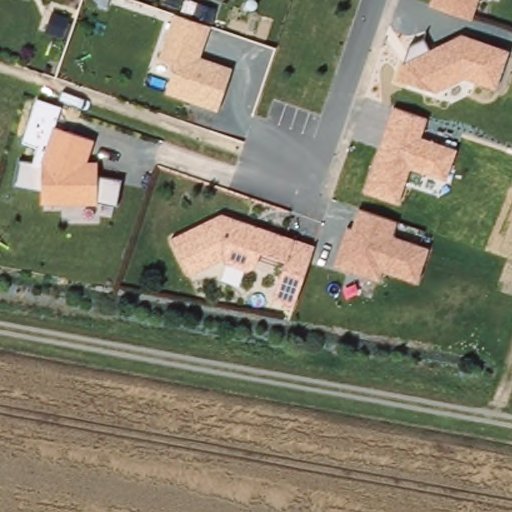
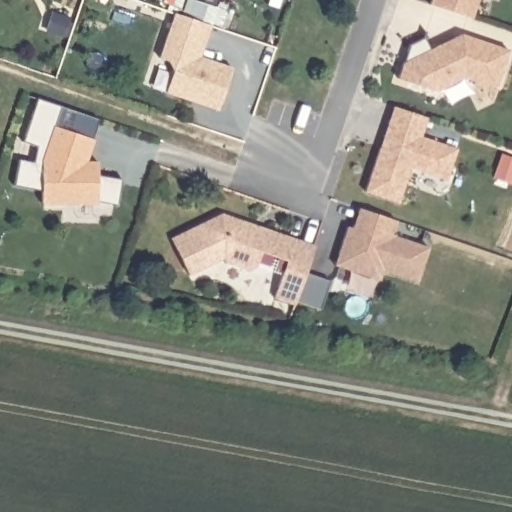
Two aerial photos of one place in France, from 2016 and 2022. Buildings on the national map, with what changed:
unchanged [(471,19),(431,6),(434,0),(478,0),(471,19)]
unchanged [(214,27),(204,58),(234,69),(219,113),(168,97),(175,73),(174,65),(159,60),(174,13),(214,27)]
unchanged [(410,45),(425,38),(430,51),(461,35),(508,51),(495,89),(463,78),(436,92),(398,79),(410,45)]
unchanged [(392,106),(426,119),(421,139),(456,149),(446,180),(409,169),(398,204),(364,191),(392,106)]
unchanged [(97,140),(90,162),(100,162),(100,176),(124,182),(118,210),(100,206),(43,206),(42,190),(17,185),(20,162),(40,166),(54,127),(97,140)]
unchanged [(345,228),(350,229),(357,208),(396,220),(391,236),(428,247),(416,280),(383,270),(380,280),(333,266),(345,228)]
unchanged [(226,215),(316,248),(294,308),(271,301),(283,263),(260,254),(252,273),(221,262),(189,276),(170,240),(226,215)]

